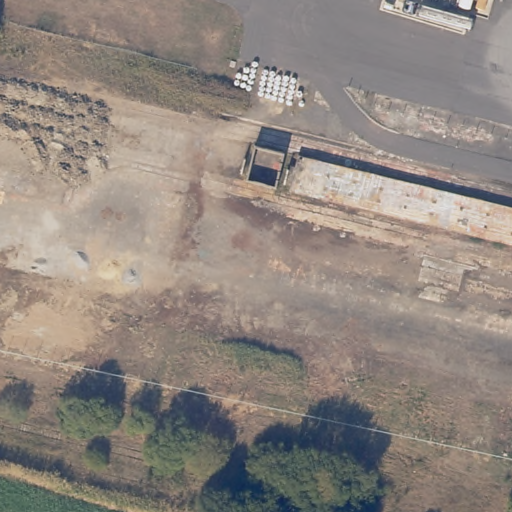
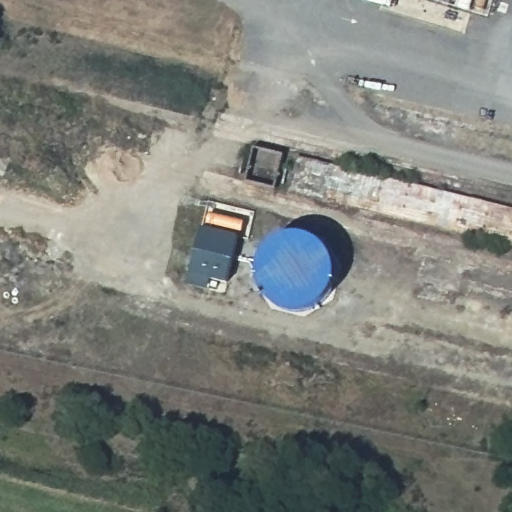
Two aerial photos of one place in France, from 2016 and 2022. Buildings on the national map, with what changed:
new [(202,226),(239,235),(228,281),(209,276),(207,288),(189,284),(192,273),(202,226)]

